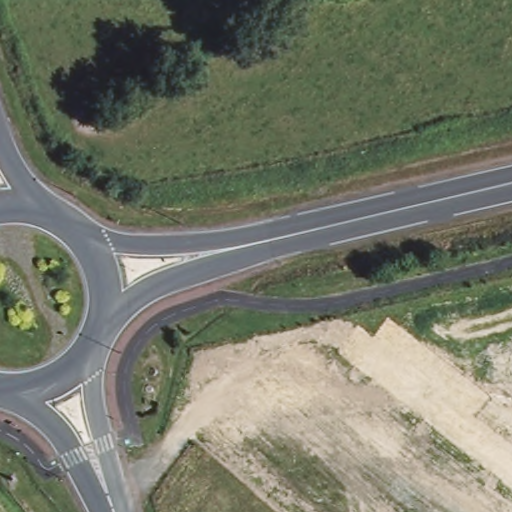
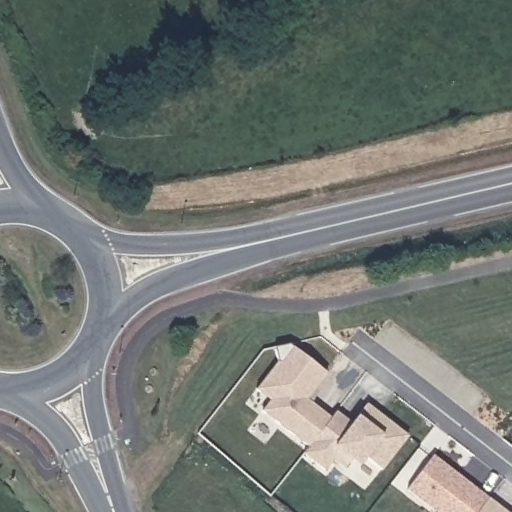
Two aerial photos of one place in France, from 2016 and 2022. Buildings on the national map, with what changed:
new [(311,402),(330,417),(308,446),(262,410),(270,400),(256,389),(277,361),(275,346),(289,343),(326,372),(314,388),(317,391),(311,402)]
new [(330,417),(335,411),(351,423),(358,413),(366,403),(407,435),(381,470),(365,457),(351,459),(344,468),(332,460),(325,470),(303,453),(308,446),(330,417)]
new [(488,497),(477,512),(437,512),(407,488),(433,455),(488,497)]
new [(502,508),(507,512),(477,512),(488,497),(502,508)]

